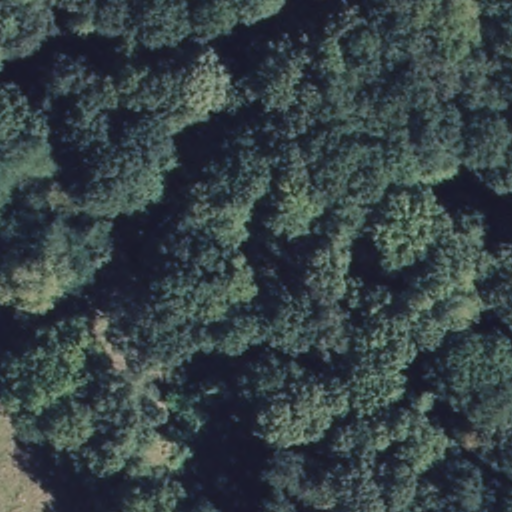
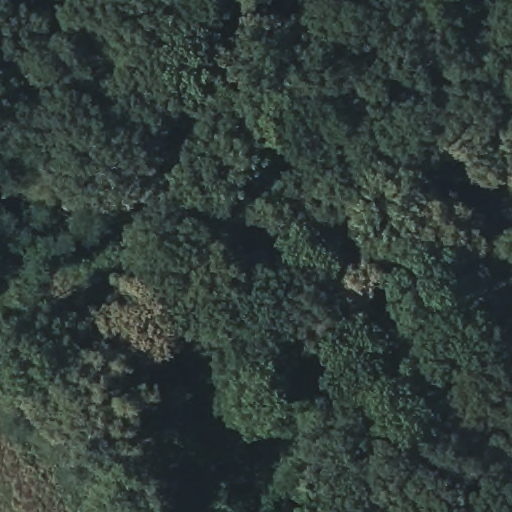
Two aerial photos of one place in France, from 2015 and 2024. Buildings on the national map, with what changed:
[]

